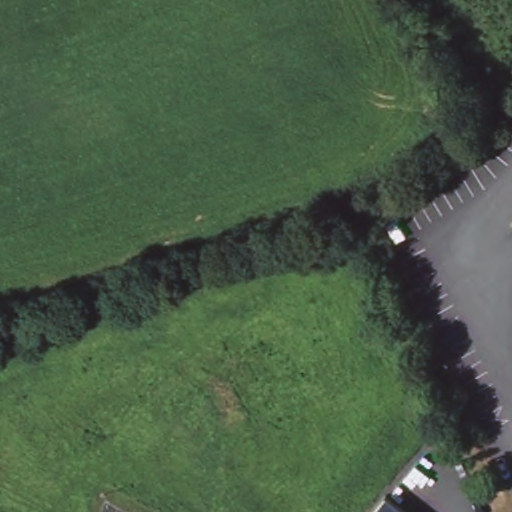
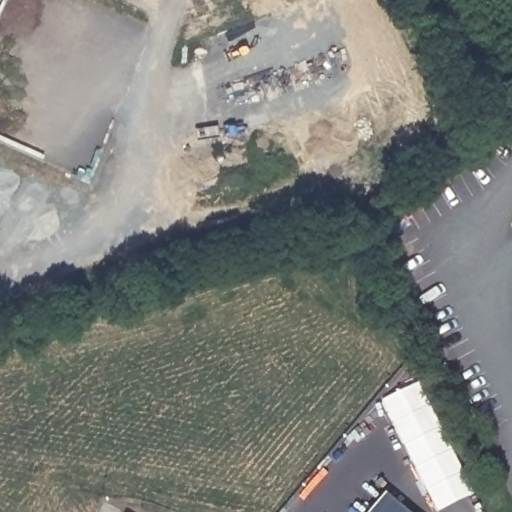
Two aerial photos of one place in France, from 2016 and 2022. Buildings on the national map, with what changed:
new [(381,399),(422,379),(475,496),(439,512),(438,512),(381,399)]
unchanged [(408,512),(366,512),(384,491),(408,512)]

